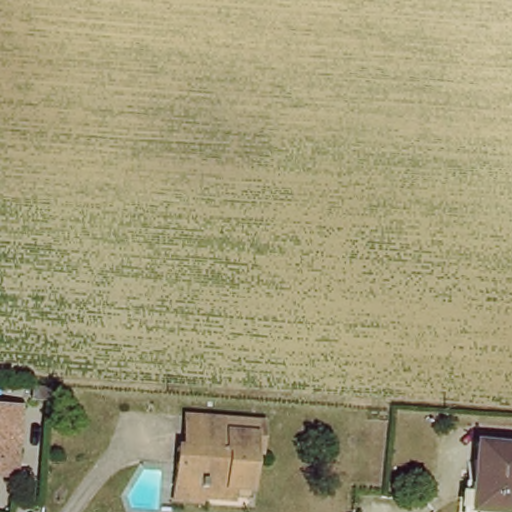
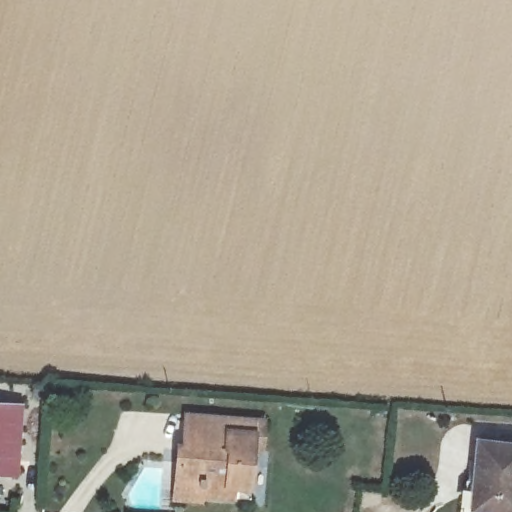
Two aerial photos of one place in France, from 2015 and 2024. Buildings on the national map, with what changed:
unchanged [(0,406),(30,408),(21,481),(0,479),(0,406)]
unchanged [(242,489),(241,502),(203,497),(204,484),(181,483),(185,445),(189,446),(193,416),(264,422),(257,491),(242,489)]
unchanged [(473,509),(479,441),(512,444),(512,512),(500,512),(473,509)]

